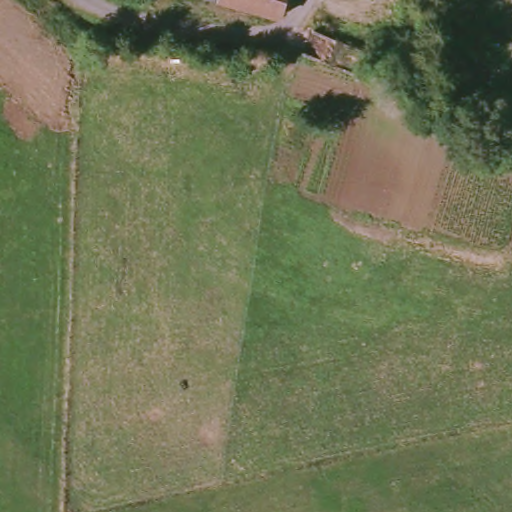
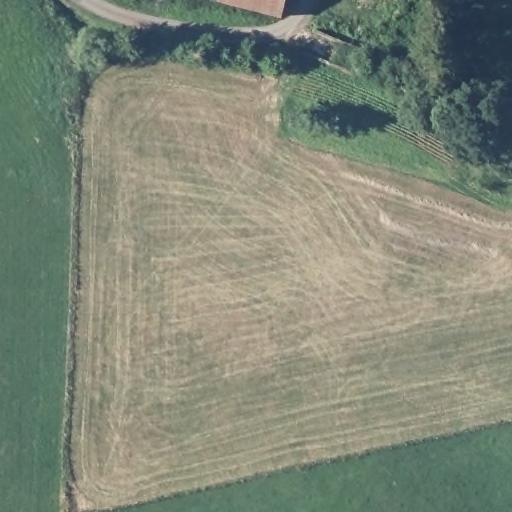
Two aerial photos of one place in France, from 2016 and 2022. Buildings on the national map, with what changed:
unchanged [(277,20),(203,0),(283,0),(277,20)]

